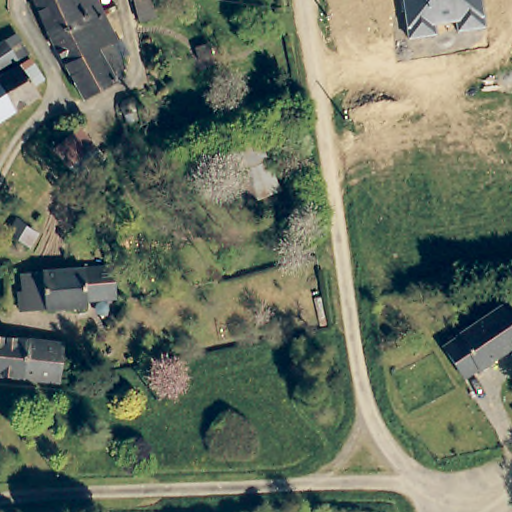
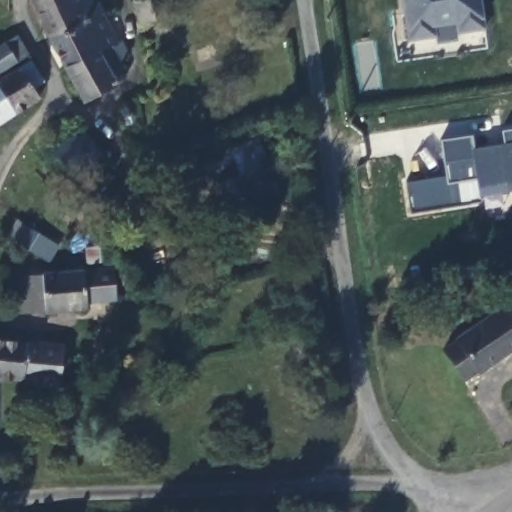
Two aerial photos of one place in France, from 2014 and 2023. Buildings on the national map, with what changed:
unchanged [(48,34),(31,0),(93,0),(99,11),(48,34)]
unchanged [(136,18),(131,0),(148,0),(151,12),(136,18)]
unchanged [(458,33),(457,22),(434,25),(436,35),(407,40),(402,0),(482,0),(486,29),(458,33)]
unchanged [(79,98),(62,62),(48,34),(99,11),(113,41),(109,43),(111,48),(116,59),(119,65),(108,73),(112,82),(79,98)]
unchanged [(0,73),(0,50),(4,47),(15,64),(0,73)]
unchanged [(31,62),(45,87),(34,94),(40,103),(15,118),(0,127),(0,82),(19,70),(31,62)]
unchanged [(77,122),(103,152),(85,167),(78,174),(76,175),(50,145),(77,122)]
new [(451,198),(441,137),(471,132),(474,147),(504,143),(501,128),(512,126),(512,190),(451,198)]
unchanged [(229,147),(259,138),(268,169),(276,200),(246,209),(225,216),(217,185),(238,179),(229,147)]
unchanged [(4,227),(14,210),(20,215),(25,218),(14,233),(4,227)]
unchanged [(27,277),(76,271),(111,263),(120,288),(91,294),(94,307),(52,314),(51,308),(31,310),(27,277)]
unchanged [(445,348),(459,338),(458,336),(507,303),(512,311),(512,347),(467,378),(445,348)]
unchanged [(66,344),(62,380),(0,376),(0,337),(27,338),(66,344)]

